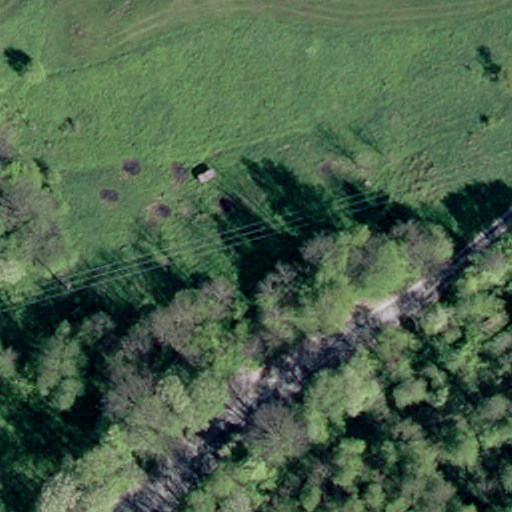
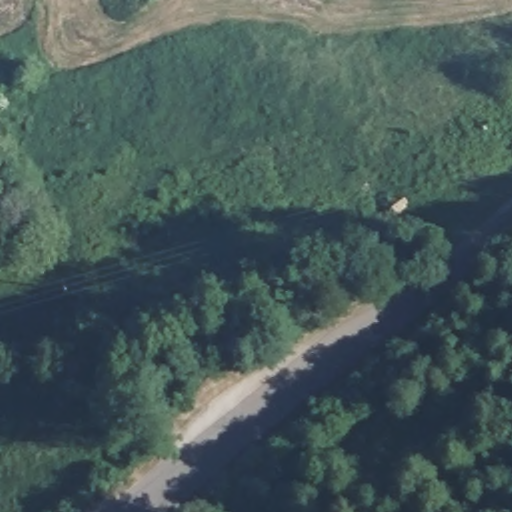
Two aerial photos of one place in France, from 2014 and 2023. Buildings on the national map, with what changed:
[]

